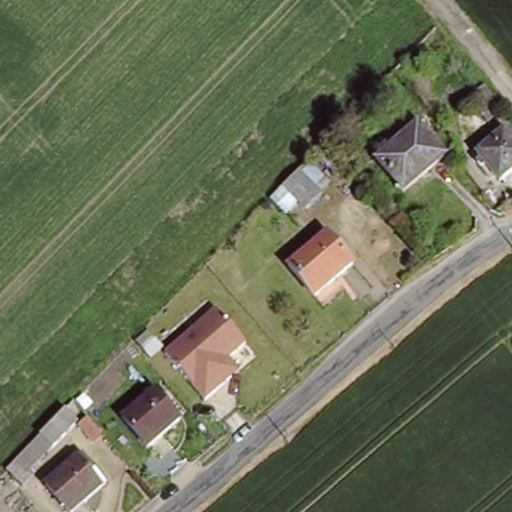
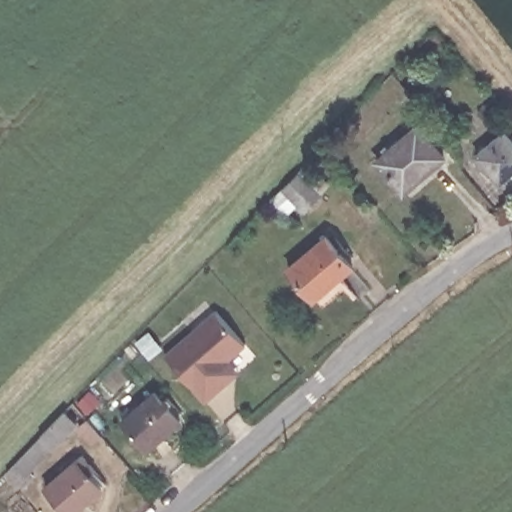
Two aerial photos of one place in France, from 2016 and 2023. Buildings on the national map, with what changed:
unchanged [(501,111),(486,124),(475,112),(491,99),(501,111)]
unchanged [(442,152),(424,169),(420,165),(399,184),(375,158),(417,122),(442,152)]
unchanged [(485,164),(479,158),(482,155),(479,151),(484,147),(487,151),(506,135),(512,143),(512,178),(505,184),(490,169),(484,174),(480,168),(485,164)]
unchanged [(331,183),(305,211),(298,204),(285,214),(272,195),(307,160),(331,183)]
unchanged [(352,267),(314,299),(289,269),(326,237),(352,267)]
unchanged [(215,305),(247,344),(231,358),(239,372),(202,403),(161,350),(215,305)]
unchanged [(116,425),(149,397),(156,391),(181,420),(174,426),(141,454),(116,425)]
unchanged [(60,416),(72,428),(26,475),(31,479),(19,492),(2,477),(60,416)]
unchanged [(88,447),(72,431),(81,423),(95,439),(88,447)]
unchanged [(65,512),(45,487),(77,460),(85,454),(97,469),(89,475),(100,489),(72,512),(65,512)]

